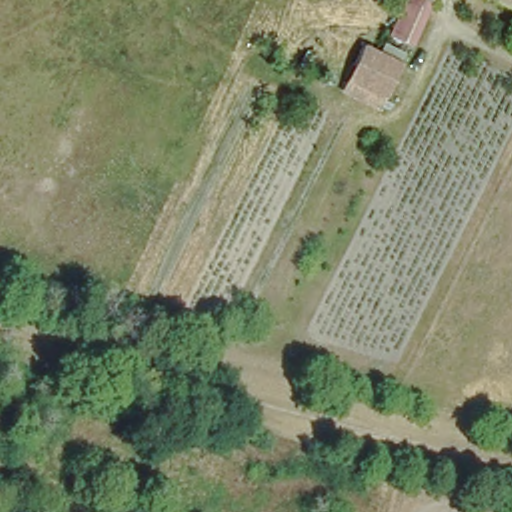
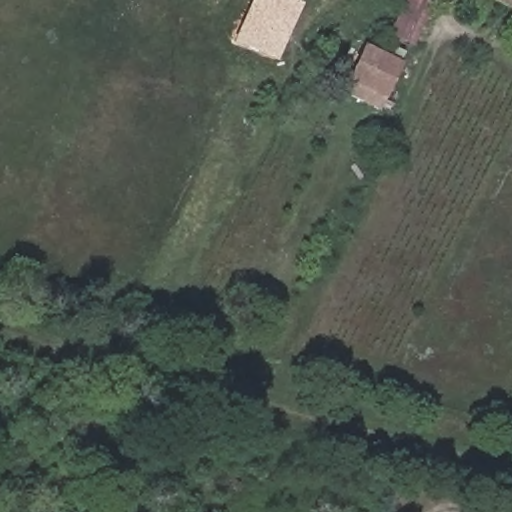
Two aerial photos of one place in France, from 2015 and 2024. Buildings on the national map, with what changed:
new [(295,0),(302,3),(276,61),(232,41),(251,0),(295,0)]
unchanged [(399,0),(431,0),(409,48),(383,36),(399,0)]
unchanged [(355,65),(365,44),(400,60),(379,105),(345,89),(343,88),(355,65)]

